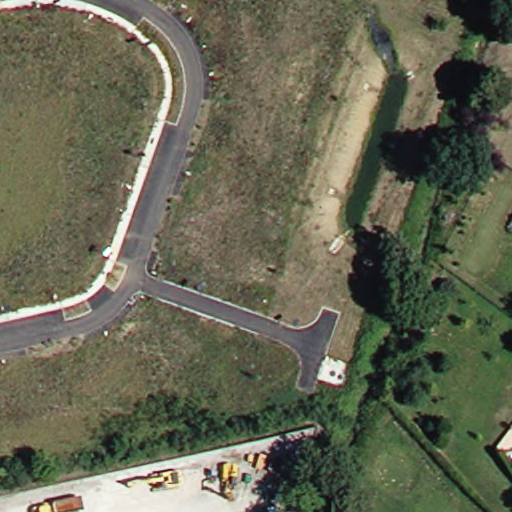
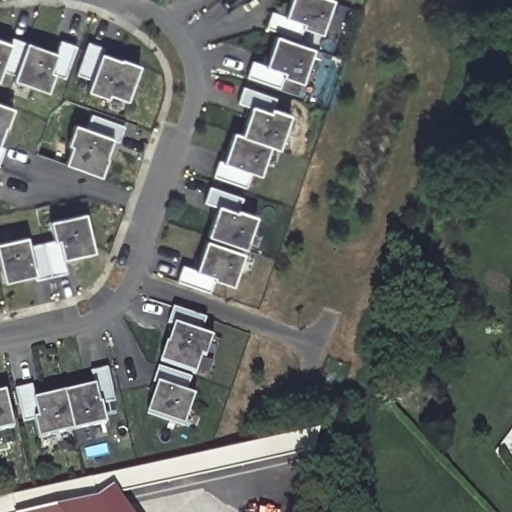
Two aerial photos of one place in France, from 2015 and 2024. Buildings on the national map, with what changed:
new [(284,17),(290,0),(333,0),(320,34),(301,28),(296,45),(311,49),(300,83),(282,77),(278,88),(246,78),(251,62),(264,67),(275,38),(276,33),(266,29),(271,13),(284,17)]
new [(12,39),(26,44),(56,54),(60,42),(76,47),(65,79),(54,76),(47,93),(12,81),(14,76),(0,72),(0,73),(0,41),(10,45),(12,39)]
new [(104,49),(102,55),(120,61),(121,59),(140,66),(128,103),(109,96),(107,99),(86,92),(91,81),(77,76),(89,44),(104,49)]
new [(275,99),(272,110),(290,116),(278,150),(268,147),(260,177),(250,173),(245,188),(213,177),(218,162),(223,163),(232,134),(240,137),(251,107),(237,103),(244,88),(275,99)]
new [(4,129),(0,140),(0,105),(13,110),(6,130),(4,129)]
new [(125,128),(120,143),(112,140),(100,178),(65,165),(71,148),(67,146),(75,126),(87,130),(92,116),(125,128)]
new [(0,161),(0,147),(5,148),(0,161)]
new [(242,199),(237,211),(256,217),(232,287),(212,281),(209,293),(176,283),(182,266),(196,271),(217,206),(204,203),(210,188),(242,199)]
new [(65,261),(66,274),(36,280),(35,276),(2,284),(0,273),(0,244),(26,239),(28,248),(54,243),(50,223),(85,215),(94,255),(65,261)]
new [(206,320),(201,335),(212,338),(205,359),(202,357),(197,375),(161,362),(167,345),(169,344),(174,327),(169,324),(174,308),(206,320)]
new [(186,394),(195,396),(185,427),(148,414),(157,385),(154,383),(159,368),(191,379),(186,394)]
new [(115,402),(102,405),(107,423),(39,438),(35,420),(24,423),(15,389),(34,386),(35,399),(94,386),(92,373),(107,370),(115,402)]
new [(0,430),(0,393),(5,392),(14,428),(0,430)]
new [(115,486),(134,512),(26,512),(102,496),(115,486)]

